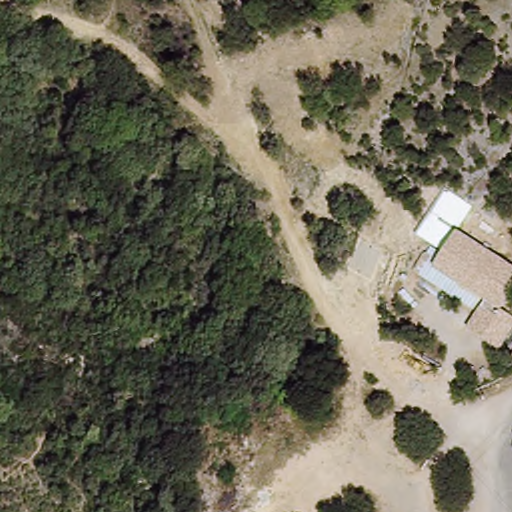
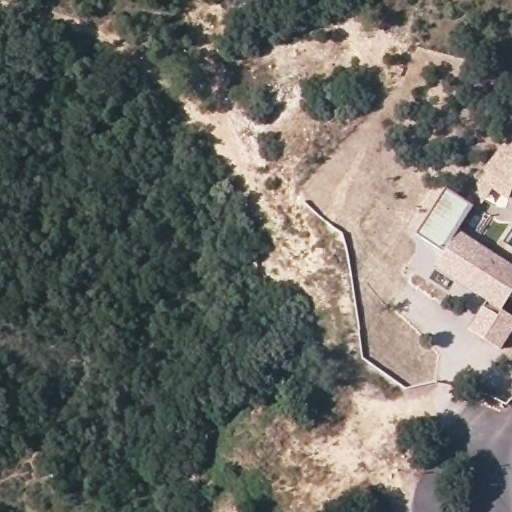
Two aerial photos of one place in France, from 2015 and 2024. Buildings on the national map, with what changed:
new [(486,200),(472,189),(510,135),(512,136),(512,190),(505,200),(492,190),(486,200)]
unchanged [(512,295),(503,310),(512,316),(512,333),(500,351),(465,330),(484,302),(433,267),(458,229),(512,264),(512,295)]

